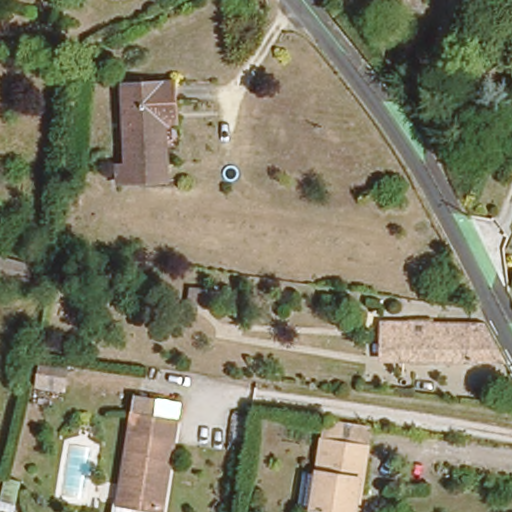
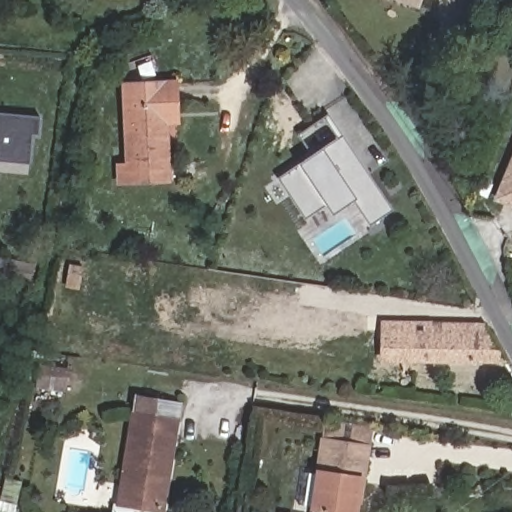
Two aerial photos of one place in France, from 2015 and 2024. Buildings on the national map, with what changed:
unchanged [(119,158),(125,158),(124,75),(177,72),(179,103),(165,103),(169,177),(120,178),(119,158)]
new [(31,135),(29,165),(0,162),(0,113),(39,116),(39,136),(31,135)]
new [(369,226),(352,202),(330,215),(324,206),(304,219),(277,177),(295,165),(309,155),(296,135),(327,115),(391,211),(369,226)]
new [(493,200),(512,150),(512,208),(493,200)]
unchanged [(4,252),(30,259),(26,276),(0,269),(4,252)]
unchanged [(81,264),(78,288),(63,286),(68,263),(81,264)]
unchanged [(218,288),(215,306),(185,303),(188,285),(218,288)]
unchanged [(499,355),(379,354),(382,314),(422,316),(423,322),(431,321),(431,315),(439,315),(441,320),(481,321),(499,355)]
unchanged [(65,394),(41,391),(44,371),(68,374),(65,394)]
unchanged [(123,502),(133,414),(135,393),(176,396),(175,419),(166,508),(123,502)]
unchanged [(323,436),(326,420),(364,425),(361,440),(359,459),(365,460),(362,492),(354,492),(352,512),(315,512),(315,509),(323,436)]
unchanged [(14,503),(0,500),(0,490),(4,475),(19,480),(14,503)]

